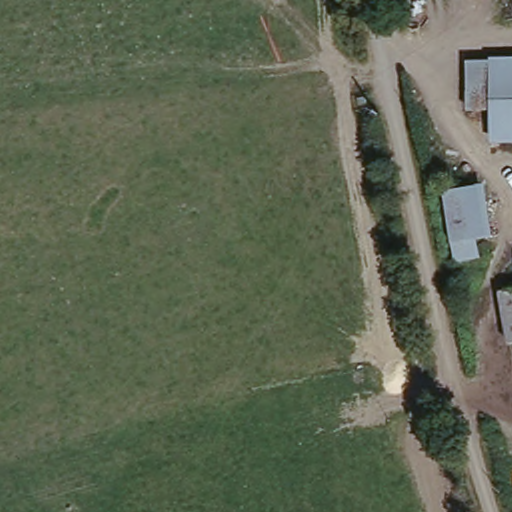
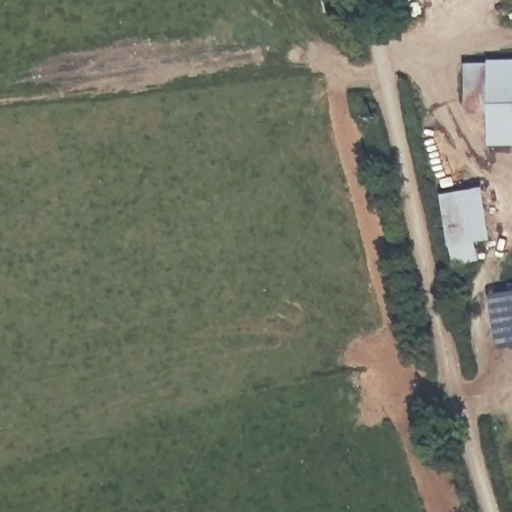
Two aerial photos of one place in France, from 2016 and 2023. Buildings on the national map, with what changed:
unchanged [(512,65),(512,143),(493,144),(492,112),(467,113),(466,66),(512,65)]
unchanged [(454,260),(452,240),(447,189),(487,185),(492,236),(477,238),(479,257),(454,260)]
unchanged [(505,347),(496,292),(512,289),(512,345),(505,347)]

